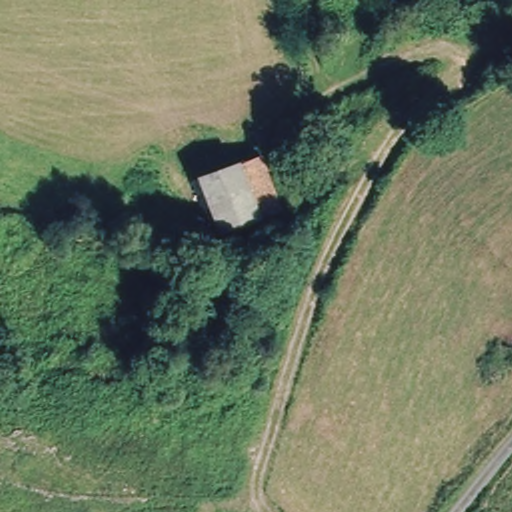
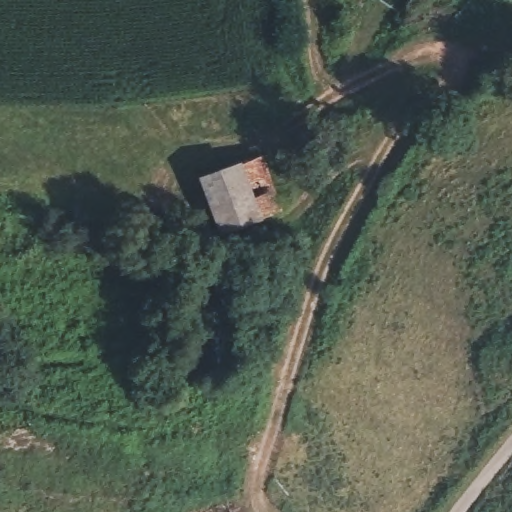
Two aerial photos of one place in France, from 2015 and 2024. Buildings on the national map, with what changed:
unchanged [(218,240),(197,185),(256,162),(277,216),(271,219),(218,240)]

